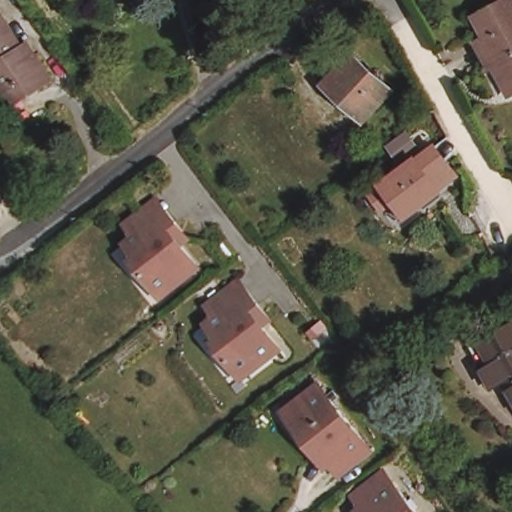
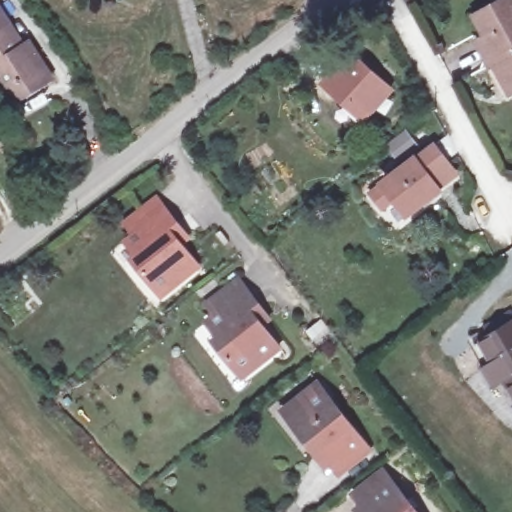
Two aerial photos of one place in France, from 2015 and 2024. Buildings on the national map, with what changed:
unchanged [(495,60),(490,64),(476,40),(481,37),(479,31),(485,26),(479,14),(504,0),(512,0),(512,91),(511,92),(495,60)]
unchanged [(22,45),(32,40),(41,53),(57,76),(26,99),(16,106),(7,92),(0,83),(0,11),(22,45)]
unchanged [(351,57),(387,91),(362,118),(326,85),(351,57)]
unchanged [(434,143),(447,164),(428,180),(434,189),(403,213),(380,183),(434,143)]
unchanged [(131,259),(136,254),(122,237),(129,231),(122,218),(135,207),(153,192),(163,206),(172,218),(185,234),(179,240),(197,263),(179,277),(158,294),(154,288),(131,259)]
unchanged [(212,341),(217,337),(207,322),(215,316),(205,302),(219,291),(237,276),(248,289),(259,303),(270,318),(262,326),(279,347),(260,361),(241,376),(235,369),(212,341)]
unchanged [(504,318),(512,314),(512,381),(506,371),(497,375),(487,353),(492,349),(484,329),(504,318)]
unchanged [(365,435),(375,447),(342,472),(334,461),(332,462),(320,448),(325,446),(315,434),(310,438),(292,416),(285,408),(302,395),(320,380),(365,435)]
unchanged [(357,508),(360,505),(350,492),(380,470),(390,482),(414,512),(360,512),(357,508)]

